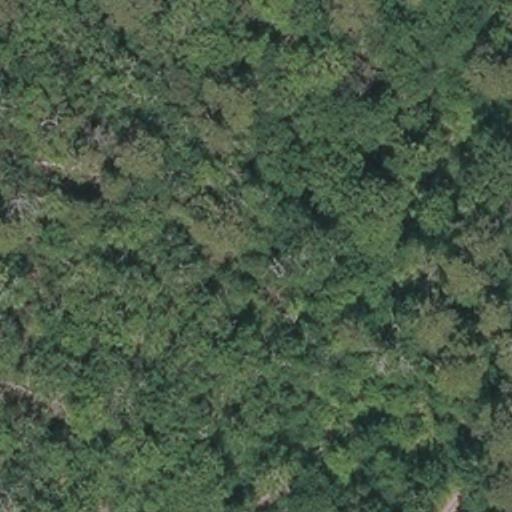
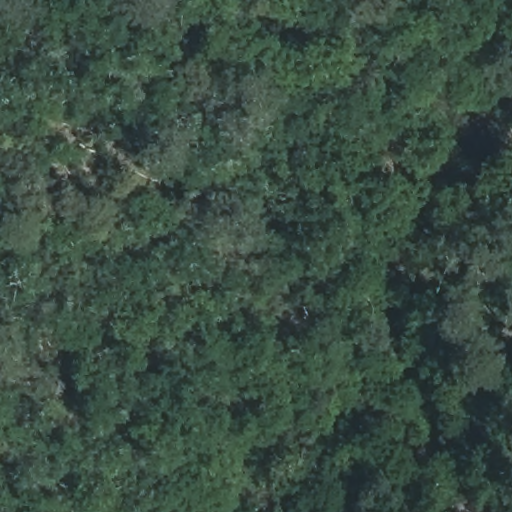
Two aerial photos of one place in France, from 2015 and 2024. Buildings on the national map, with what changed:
[]

